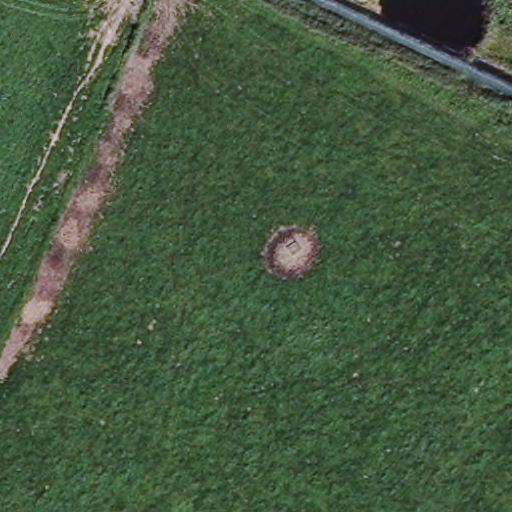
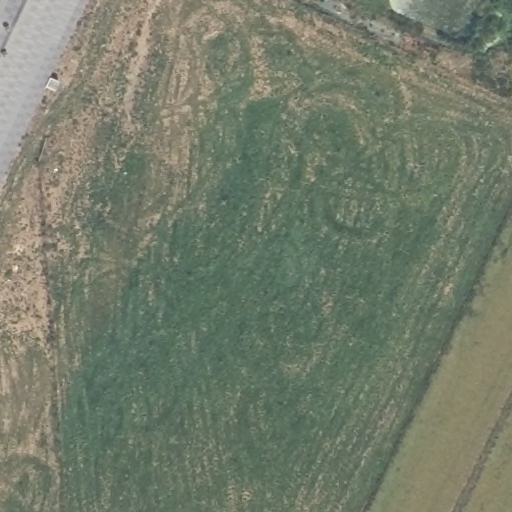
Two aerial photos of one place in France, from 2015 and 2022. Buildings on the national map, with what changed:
new [(0,177),(0,0),(85,0),(0,177)]

